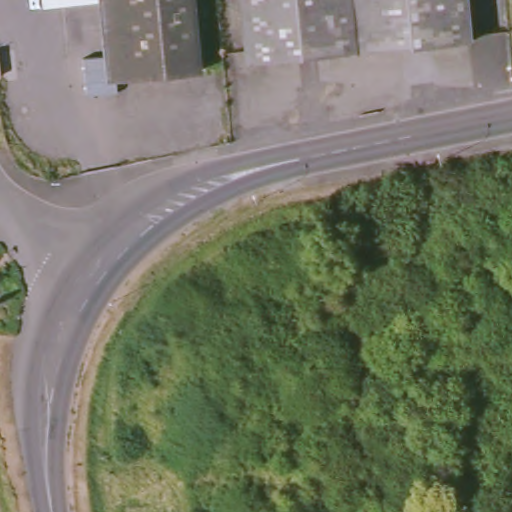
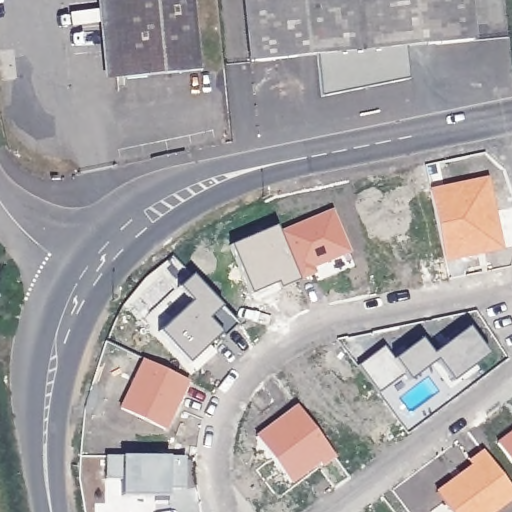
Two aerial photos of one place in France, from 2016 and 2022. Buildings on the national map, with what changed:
unchanged [(185,0),(192,75),(116,82),(108,0),(185,0)]
unchanged [(469,0),(472,36),(250,57),(245,0),(469,0)]
new [(506,250),(445,262),(432,187),(491,176),(506,250)]
new [(337,209),(354,251),(314,270),(316,274),(285,286),(280,282),(255,292),(232,245),(280,223),(282,230),(337,209)]
new [(191,360),(162,330),(195,300),(181,286),(197,272),(242,322),(191,360)]
new [(454,380),(438,359),(415,378),(408,374),(381,392),(357,363),(387,341),(397,353),(424,334),(438,350),(472,326),(491,351),(454,380)]
new [(167,429),(118,408),(143,356),(192,380),(167,429)]
new [(325,469),(320,466),(295,484),(257,433),(300,402),(337,458),(325,469)]
new [(512,432),(512,463),(497,443),(512,432)]
new [(437,488),(470,466),(465,460),(481,447),(512,484),(512,498),(495,512),(456,512),(437,488)]
new [(191,488),(172,490),(172,495),(126,496),(126,482),(105,482),(107,455),(188,456),(191,488)]

